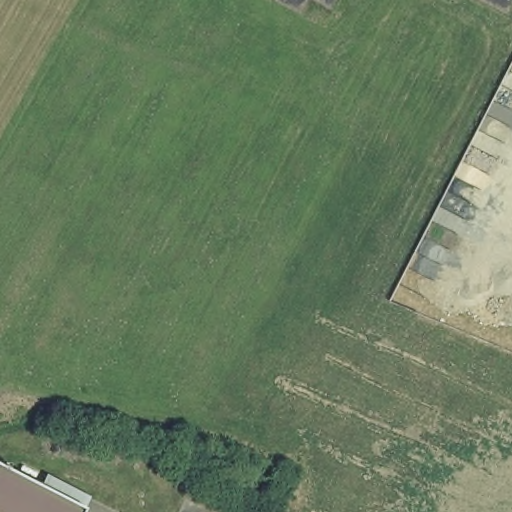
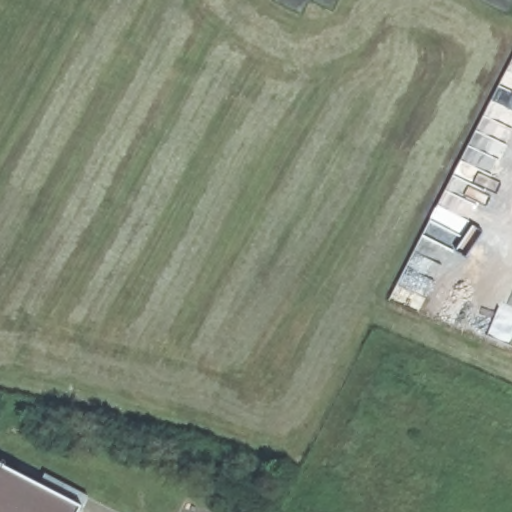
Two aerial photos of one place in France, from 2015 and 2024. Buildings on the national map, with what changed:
unchanged [(78,508),(76,512),(0,512),(0,469),(78,508)]

